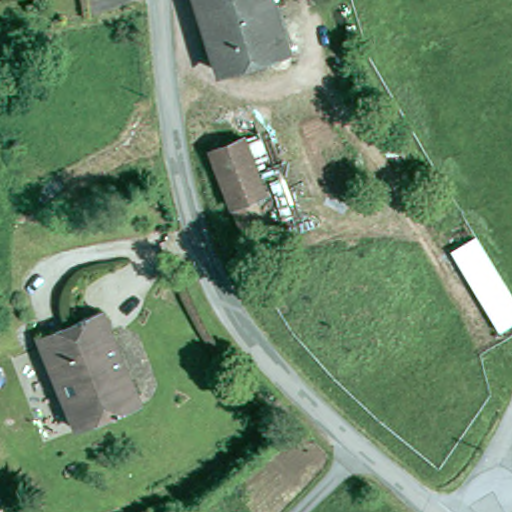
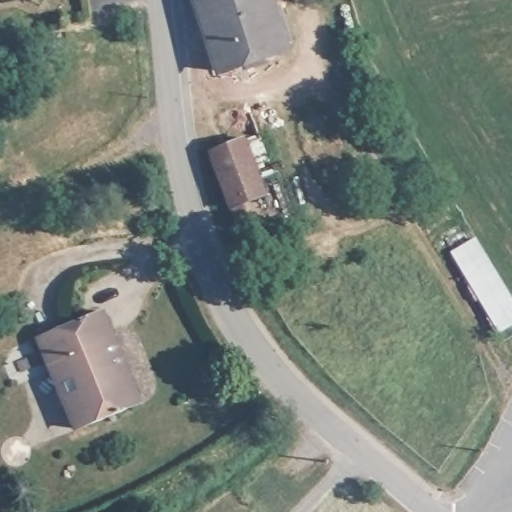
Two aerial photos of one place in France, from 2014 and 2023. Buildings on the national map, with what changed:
unchanged [(220,73),(196,0),(272,0),(289,50),(220,73)]
unchanged [(267,196),(234,209),(212,151),(244,139),(267,196)]
unchanged [(475,234),(512,295),(512,328),(499,337),(449,250),(475,234)]
unchanged [(141,404),(78,429),(41,338),(103,312),(141,404)]

